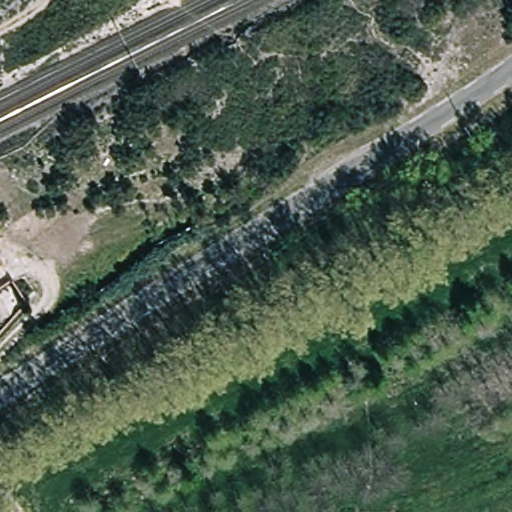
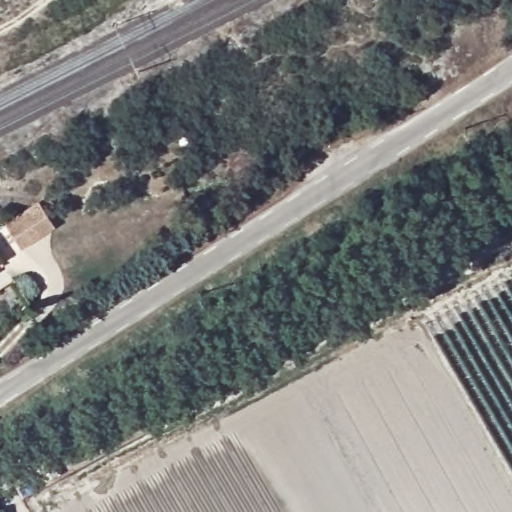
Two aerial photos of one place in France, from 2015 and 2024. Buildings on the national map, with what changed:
new [(21,250),(4,224),(38,201),(55,228),(21,250)]
unchanged [(0,258),(0,249),(4,255),(0,258)]

